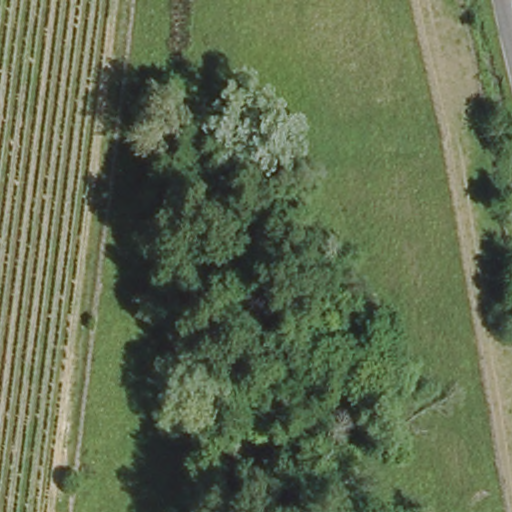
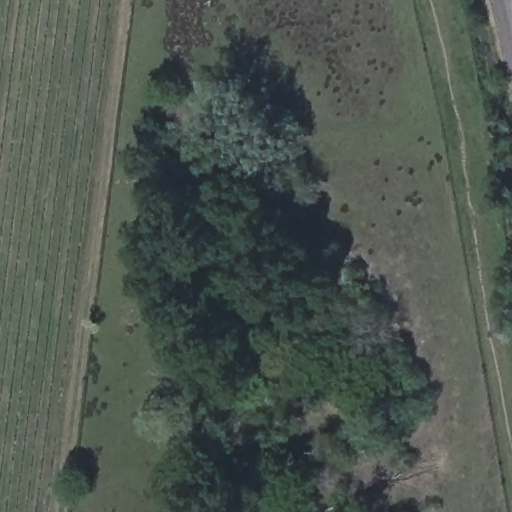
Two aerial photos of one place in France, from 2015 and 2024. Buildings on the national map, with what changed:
[]

